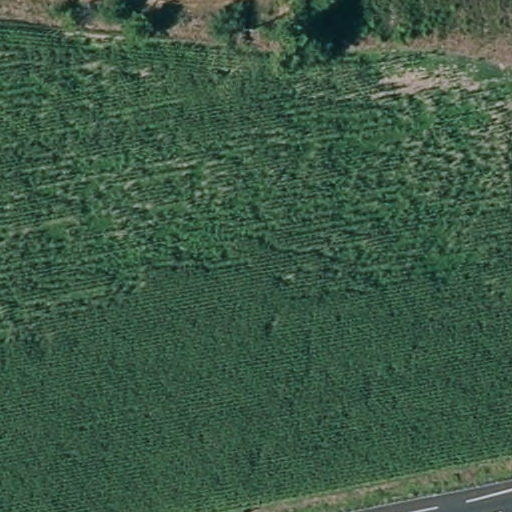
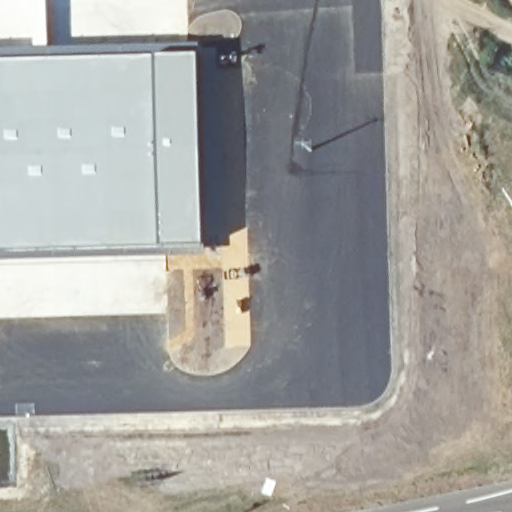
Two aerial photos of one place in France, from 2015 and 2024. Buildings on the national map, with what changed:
new [(109,52),(155,51),(155,47),(201,44),(206,251),(64,252),(0,255),(0,49),(109,47),(109,52)]

